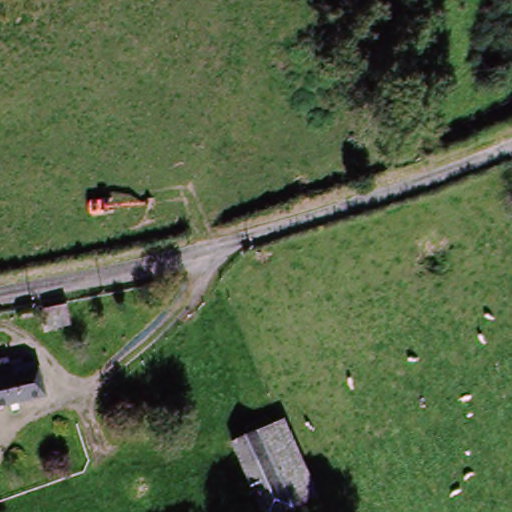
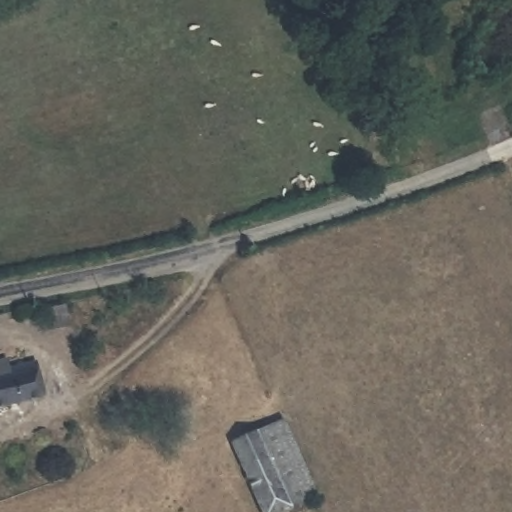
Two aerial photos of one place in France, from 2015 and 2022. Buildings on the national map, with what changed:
unchanged [(33,366),(40,402),(0,410),(0,382),(8,380),(6,372),(33,366)]
unchanged [(277,511),(277,512),(263,512),(233,444),(282,423),(313,495),(277,511)]

